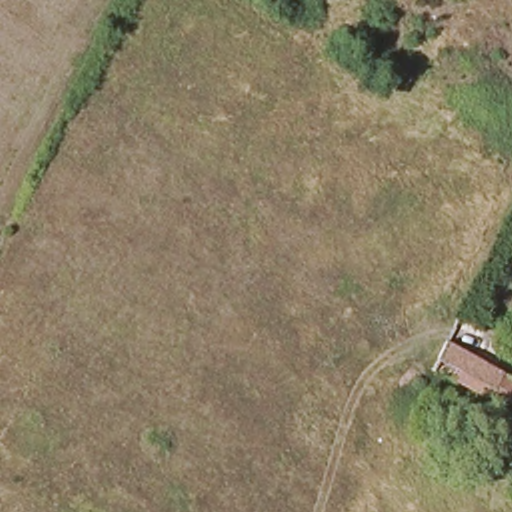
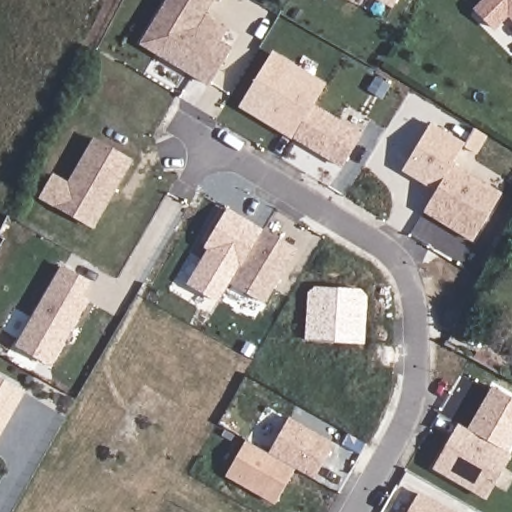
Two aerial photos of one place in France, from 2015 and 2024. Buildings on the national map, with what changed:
new [(139,44),(166,0),(213,0),(198,27),(232,47),(208,86),(139,44)]
new [(387,0),(397,0),(394,4),(387,0)]
new [(494,31),(473,9),(482,0),(512,0),(512,21),(508,17),(494,31)]
new [(327,84),(315,104),(364,133),(343,168),(240,107),(272,52),(327,84)]
new [(424,212),(435,191),(400,172),(432,122),(466,143),(454,163),(503,192),(473,242),(424,212)]
new [(94,230),(39,199),(53,174),(68,182),(93,137),(132,160),(94,230)]
new [(231,284),(219,302),(187,284),(207,250),(202,247),(227,208),(264,229),(231,284)]
new [(265,304),(231,284),(264,229),(298,248),(265,304)]
new [(67,268),(94,283),(86,297),(91,300),(53,364),(21,345),(67,268)]
new [(307,293),(314,286),(360,288),(367,296),(364,343),(305,340),(307,293)]
demolished [(512,385),(512,413),(509,418),(428,376),(443,347),(512,385)]
new [(0,438),(0,377),(25,391),(0,438)]
new [(492,385),(512,397),(512,446),(508,452),(467,427),(492,385)]
new [(269,452),(289,417),(335,443),(314,480),(297,469),(269,452)]
new [(512,454),(512,456),(487,497),(438,468),(464,425),(512,454)]
new [(249,440),(297,469),(277,503),(228,474),(249,440)]
new [(423,493),(454,512),(412,512),(423,493)]

